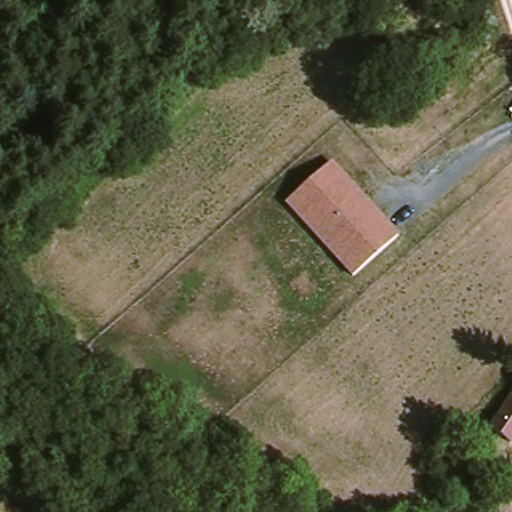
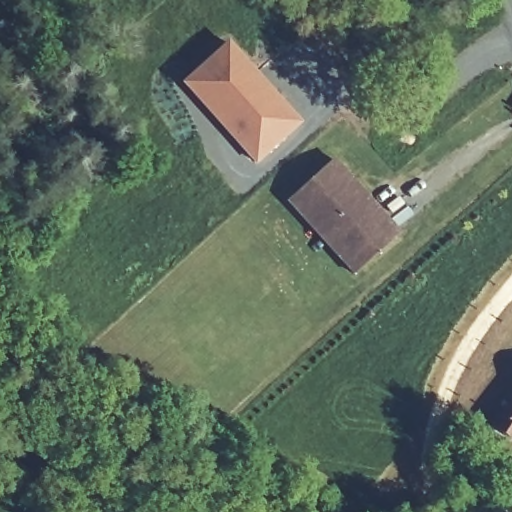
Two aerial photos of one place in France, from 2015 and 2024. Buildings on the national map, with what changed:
new [(253,163),(181,86),(225,44),(298,123),(253,163)]
unchanged [(286,202),(335,158),(403,234),(353,276),(286,202)]
unchanged [(512,398),(512,423),(500,416),(512,398)]

